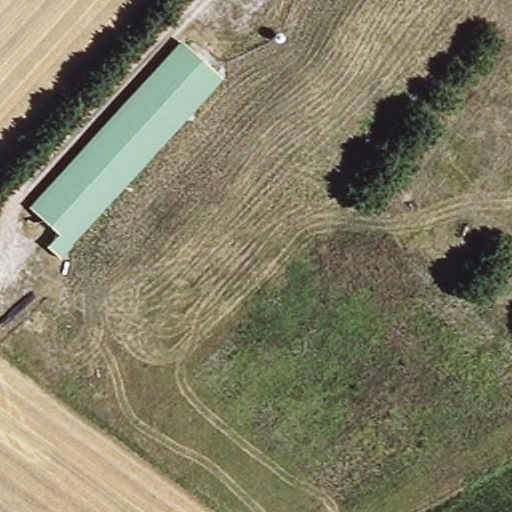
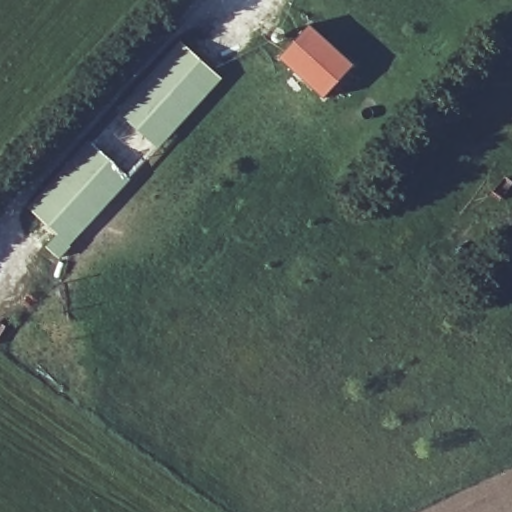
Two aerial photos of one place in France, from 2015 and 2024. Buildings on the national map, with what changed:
new [(354,62),(324,96),(279,57),(309,22),(354,62)]
unchanged [(64,240),(68,245),(58,256),(46,246),(57,235),(31,210),(184,41),(217,71),(64,240)]

